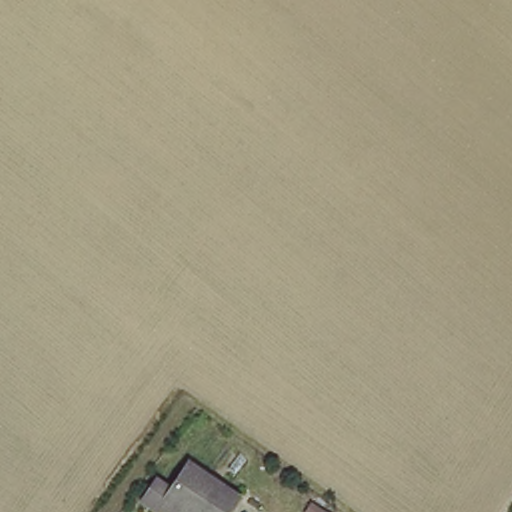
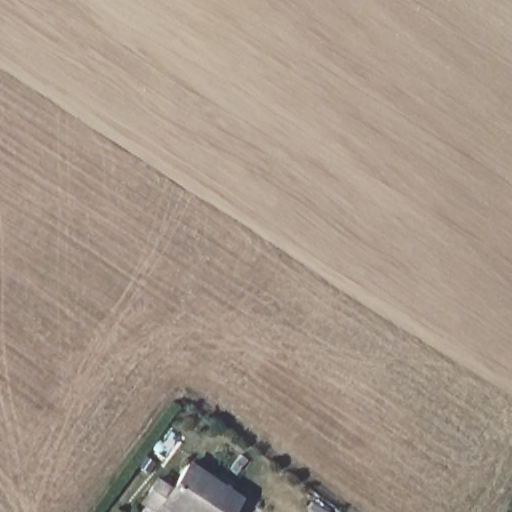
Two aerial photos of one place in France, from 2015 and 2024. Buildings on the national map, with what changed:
unchanged [(230,512),(174,512),(162,505),(184,466),(239,497),(230,512)]

